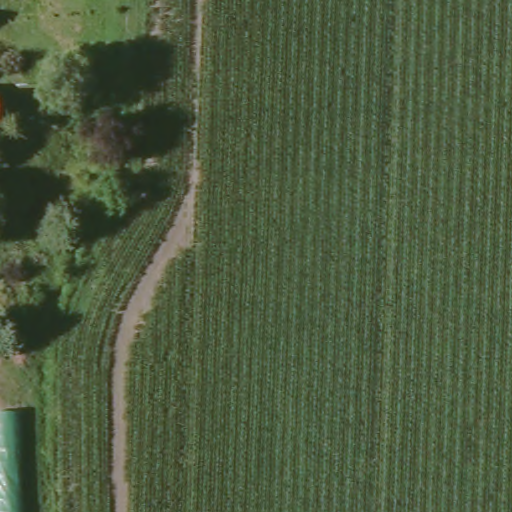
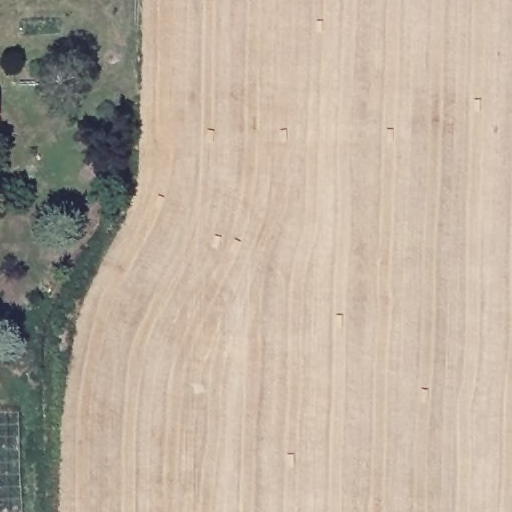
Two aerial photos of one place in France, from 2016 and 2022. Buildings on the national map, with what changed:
unchanged [(23,512),(0,512),(0,413),(20,413),(23,512)]

